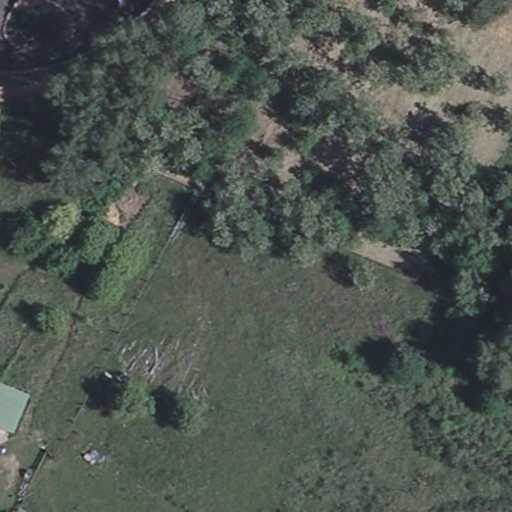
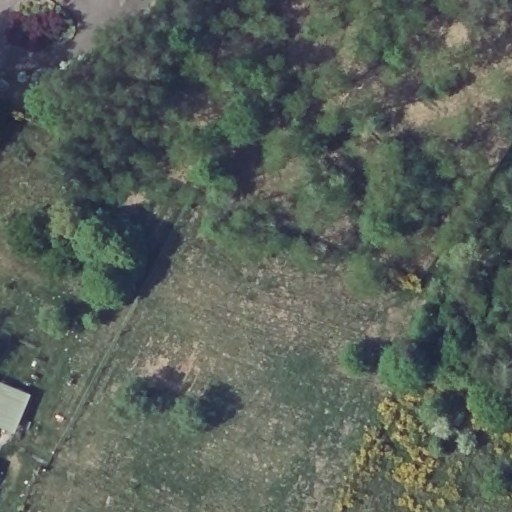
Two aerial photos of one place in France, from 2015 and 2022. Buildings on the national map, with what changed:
unchanged [(123,8),(122,0),(128,0),(123,8)]
unchanged [(16,431),(0,425),(0,379),(32,392),(16,431)]

